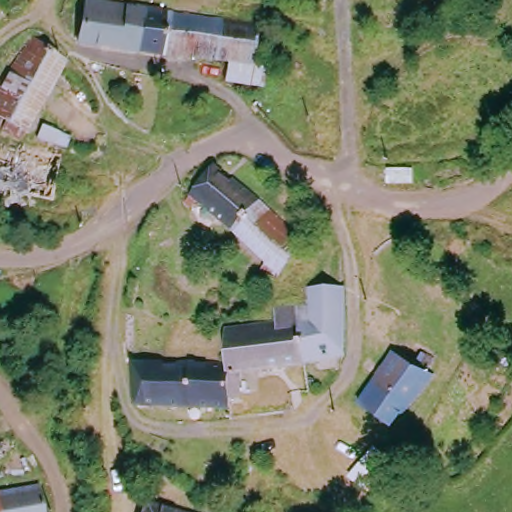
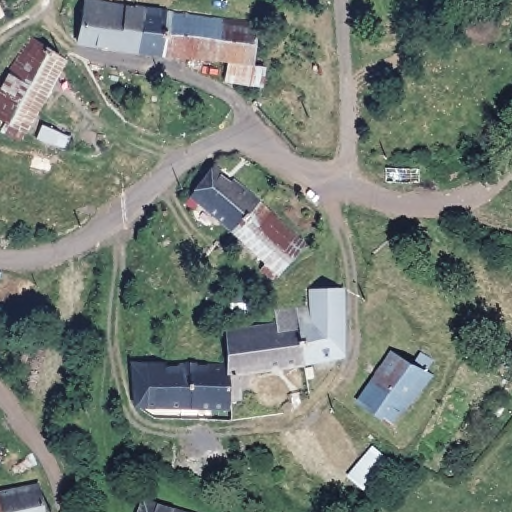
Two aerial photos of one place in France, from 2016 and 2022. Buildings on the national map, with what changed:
unchanged [(137,15),(132,56),(74,46),(82,5),(137,15)]
unchanged [(156,60),(132,56),(137,15),(161,18),(156,60)]
unchanged [(250,71),(156,60),(161,18),(253,30),(250,71)]
unchanged [(0,83),(27,37),(64,59),(18,140),(0,129),(0,126),(3,119),(0,117),(0,83)]
unchanged [(50,200),(0,191),(0,144),(58,155),(50,200)]
unchanged [(212,169),(256,204),(230,234),(187,197),(212,169)]
unchanged [(256,204),(301,245),(271,282),(258,272),(264,265),(230,234),(256,204)]
unchanged [(293,306),(308,304),(307,286),(337,286),(340,354),(302,361),(293,306)]
unchanged [(238,367),(239,395),(227,395),(227,371),(225,363),(223,329),(273,324),(272,309),(293,306),(302,361),(238,367)]
unchanged [(415,363),(425,368),(418,379),(423,382),(401,414),(397,412),(382,435),(350,412),(383,360),(408,373),(415,363)]
unchanged [(127,361),(158,362),(225,363),(227,371),(227,395),(227,405),(133,402),(127,361)]
unchanged [(25,512),(0,512),(0,494),(22,491),(25,512)]
unchanged [(164,512),(140,512),(142,505),(164,512)]

